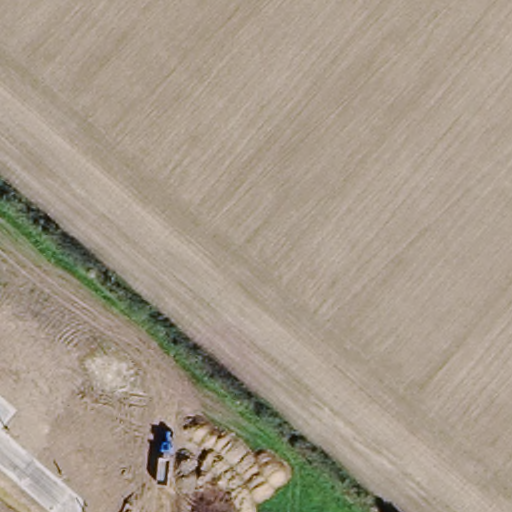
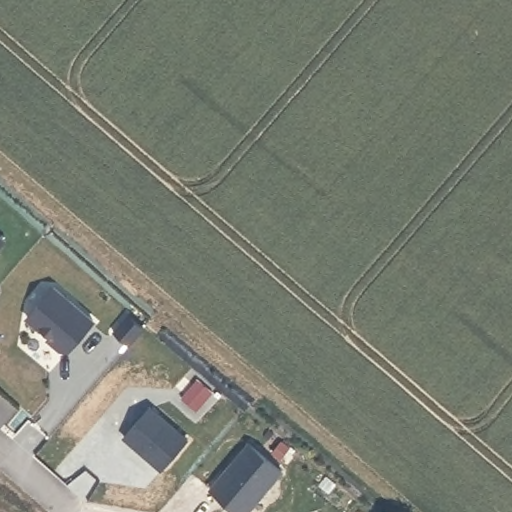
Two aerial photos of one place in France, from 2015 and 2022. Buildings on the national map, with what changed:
new [(7,242),(0,250),(0,236),(7,242)]
new [(56,288),(95,323),(70,352),(61,351),(50,340),(52,336),(45,330),(43,331),(30,318),(56,288)]
new [(155,408),(190,442),(164,471),(128,437),(155,408)]
new [(286,472),(252,512),(241,512),(215,489),(255,444),(286,472)]

